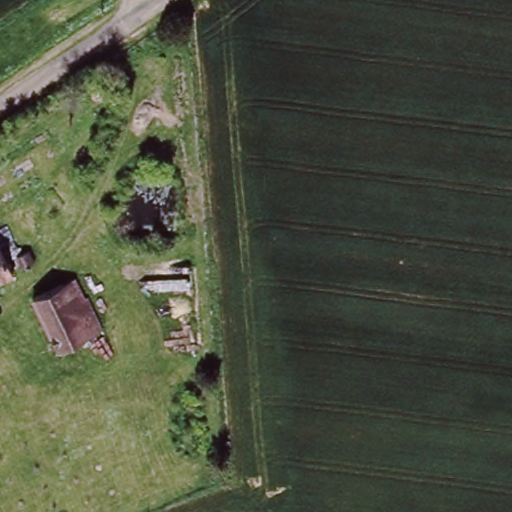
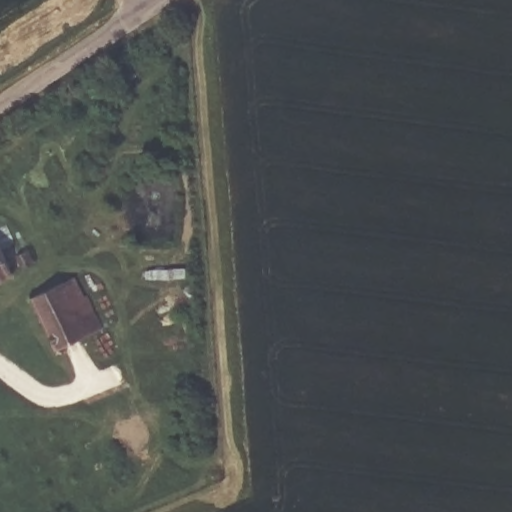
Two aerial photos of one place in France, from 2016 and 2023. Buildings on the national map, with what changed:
unchanged [(19,277),(0,285),(0,233),(2,232),(19,277)]
unchanged [(65,266),(73,282),(80,279),(93,314),(87,317),(100,347),(60,367),(24,287),(65,266)]

